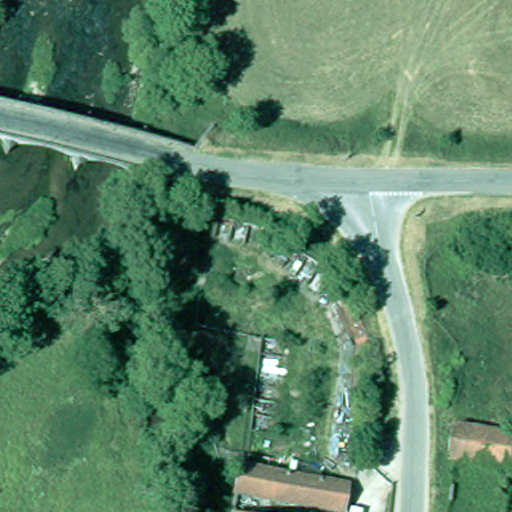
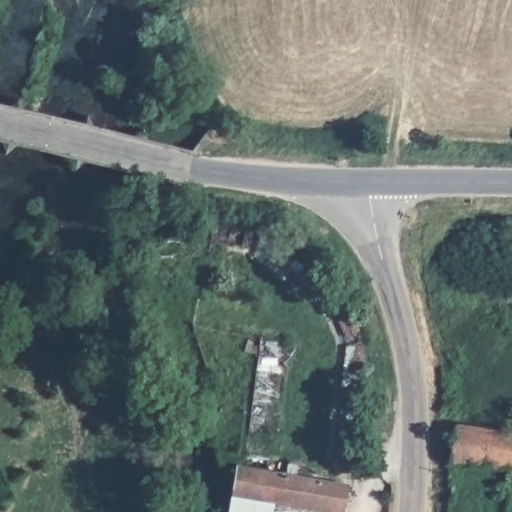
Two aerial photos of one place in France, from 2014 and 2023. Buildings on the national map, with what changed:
unchanged [(509,468),(436,457),(443,420),(512,431),(512,468),(509,468)]
unchanged [(233,463),(342,479),(337,508),(228,494),(233,463)]

